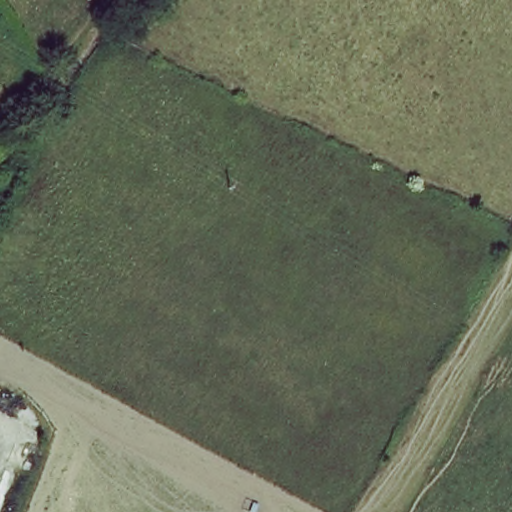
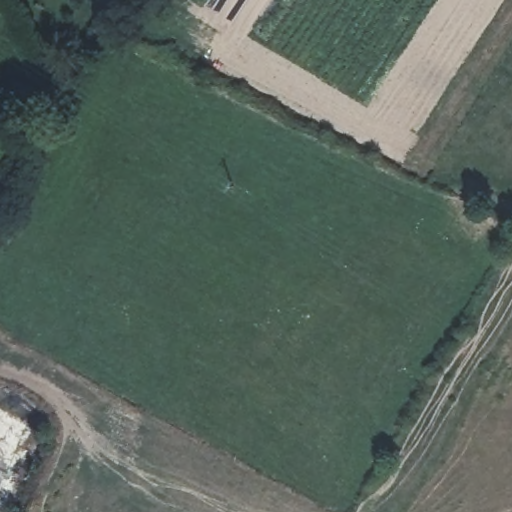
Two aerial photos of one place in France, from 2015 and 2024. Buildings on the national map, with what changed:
[]

